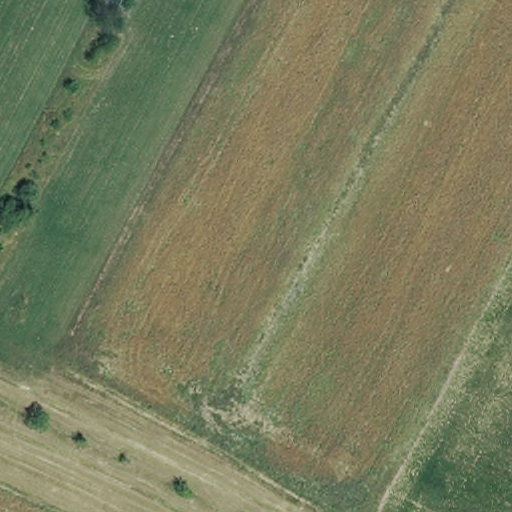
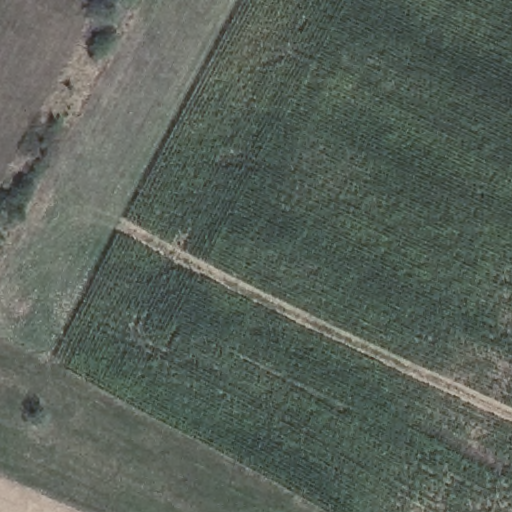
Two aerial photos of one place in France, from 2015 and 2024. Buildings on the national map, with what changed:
[]

